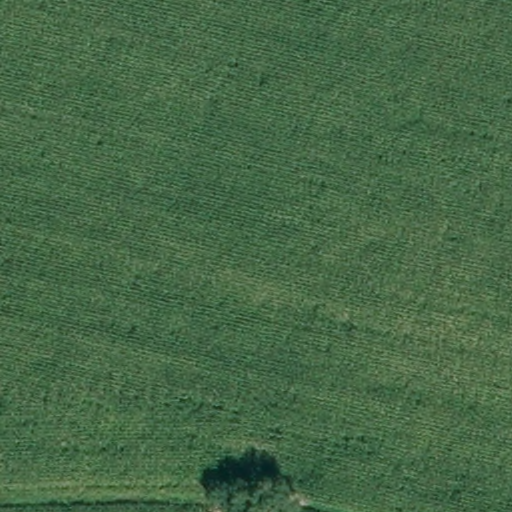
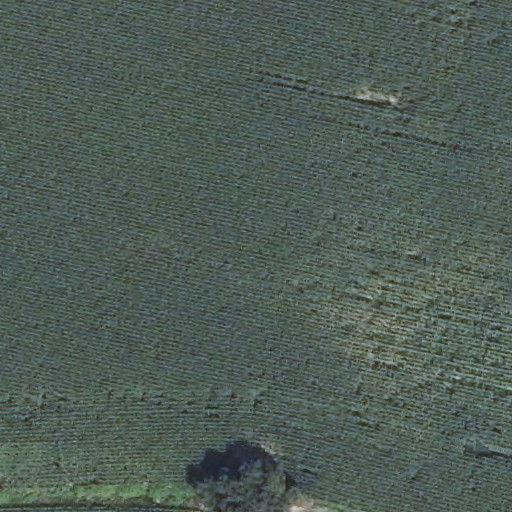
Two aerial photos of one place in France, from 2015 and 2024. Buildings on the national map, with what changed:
[]

